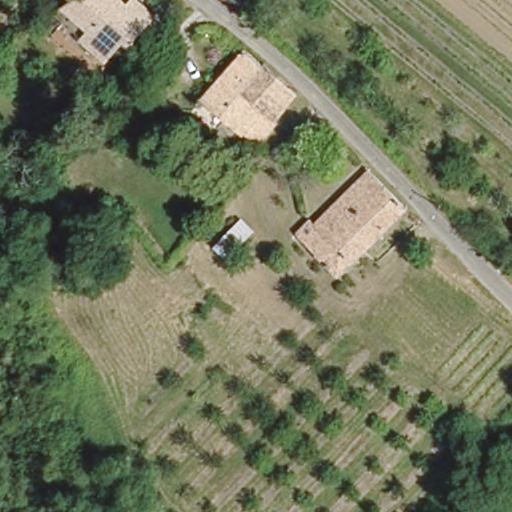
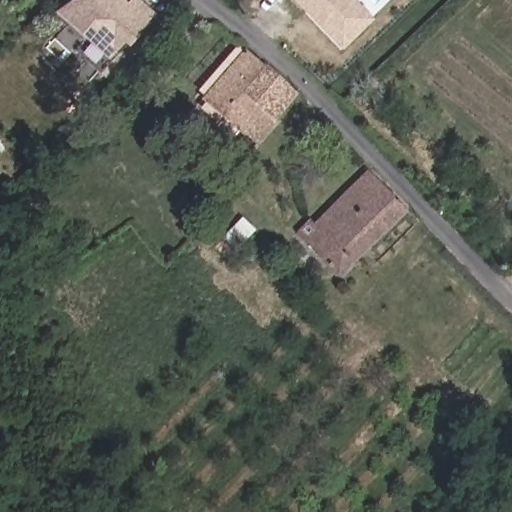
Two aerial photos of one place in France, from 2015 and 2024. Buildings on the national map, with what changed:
unchanged [(69,16),(65,12),(76,5),(84,0),(129,0),(138,8),(145,1),(162,17),(138,44),(133,39),(123,50),(115,59),(69,16)]
new [(374,20),(341,52),(291,0),(355,0),(374,20)]
unchanged [(238,91),(267,118),(271,122),(254,142),(253,141),(199,94),(243,49),(262,66),(238,91)]
unchanged [(238,91),(262,66),(282,84),(292,93),(267,118),(238,91)]
unchanged [(407,207),(335,275),(295,233),(308,222),(313,226),(371,172),(407,207)]

